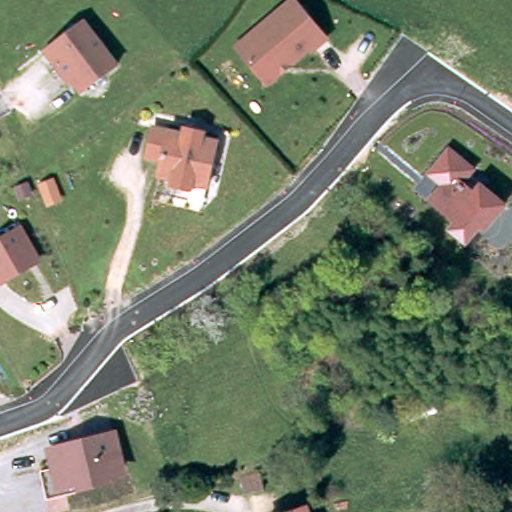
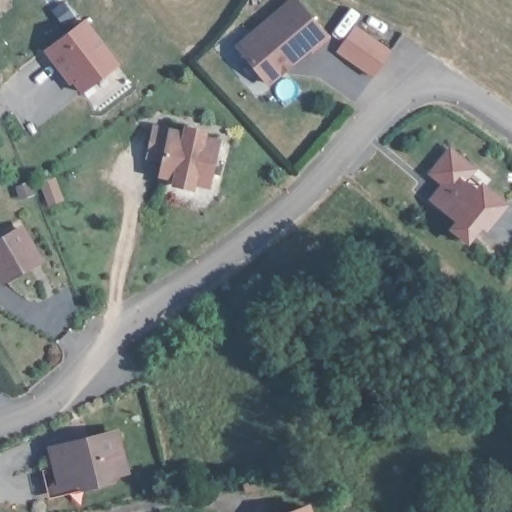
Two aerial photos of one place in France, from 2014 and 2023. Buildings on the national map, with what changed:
unchanged [(324,38),(317,44),(309,50),(308,48),(266,84),(235,48),(290,0),(291,0),(309,21),(324,38)]
unchanged [(117,63),(82,90),(68,71),(65,73),(45,47),(83,19),(117,63)]
new [(336,51),(354,25),(391,50),(373,77),(336,51)]
unchanged [(188,132),(190,125),(208,129),(206,135),(220,138),(211,183),(196,180),(195,186),(176,182),(177,176),(163,172),(166,157),(153,155),(158,124),(188,132)]
unchanged [(442,186),(428,176),(449,147),(480,170),(475,176),(510,205),(491,231),(484,227),(468,246),(449,231),(456,223),(429,200),(442,186)]
unchanged [(12,268),(9,263),(0,269),(0,234),(28,218),(45,249),(12,268)]
unchanged [(341,357),(303,370),(298,356),(336,343),(341,357)]
unchanged [(43,468),(63,463),(58,447),(116,432),(124,466),(108,470),(109,475),(85,481),(86,487),(50,496),(43,468)]
unchanged [(271,485),(246,490),(243,474),(268,468),(271,485)]
unchanged [(311,512),(290,512),(309,506),(311,512)]

